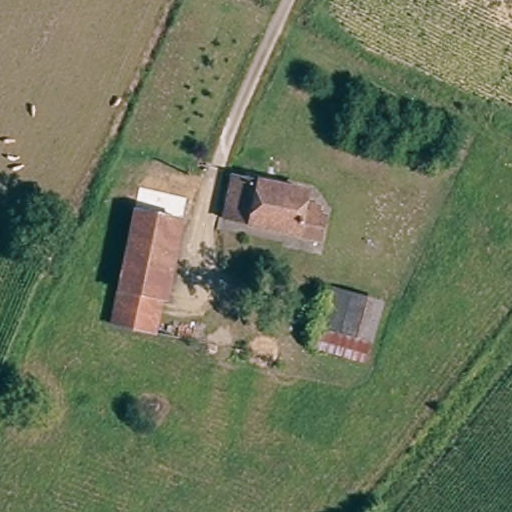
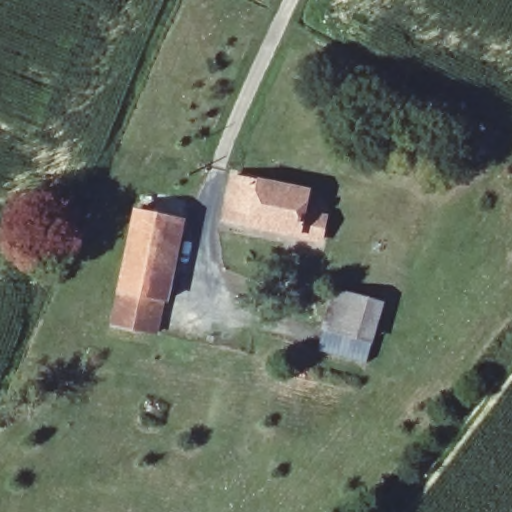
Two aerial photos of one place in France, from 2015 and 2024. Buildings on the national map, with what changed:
unchanged [(224,217),(233,172),(306,187),(302,212),(309,213),(311,206),(322,207),(321,214),(327,215),(321,239),(224,217)]
unchanged [(176,218),(159,297),(126,291),(113,288),(132,209),(176,218)]
unchanged [(126,291),(159,297),(153,330),(120,325),(126,291)]
unchanged [(380,307),(371,343),(323,331),(331,296),(380,307)]

